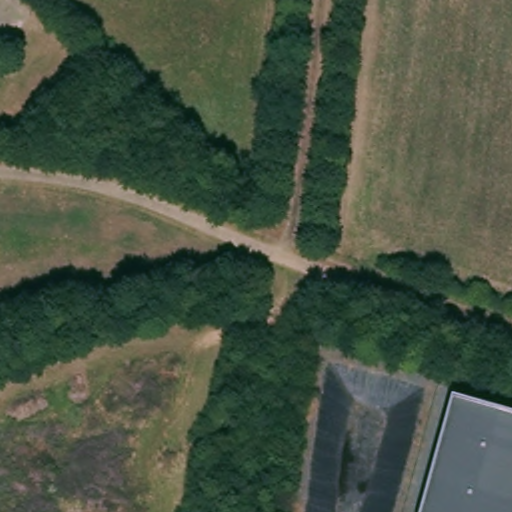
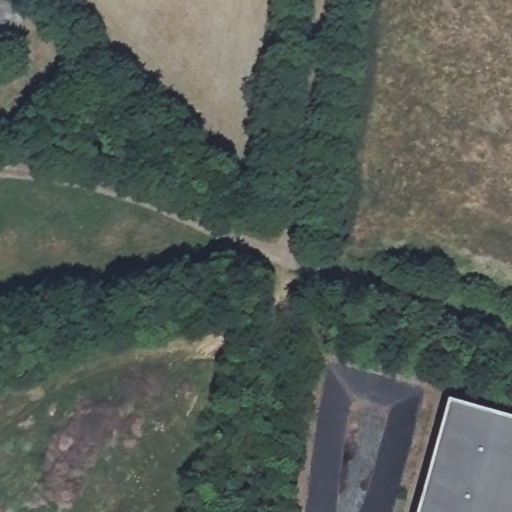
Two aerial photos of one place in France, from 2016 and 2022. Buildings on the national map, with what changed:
unchanged [(512,512),(417,512),(447,402),(512,421),(512,512)]

